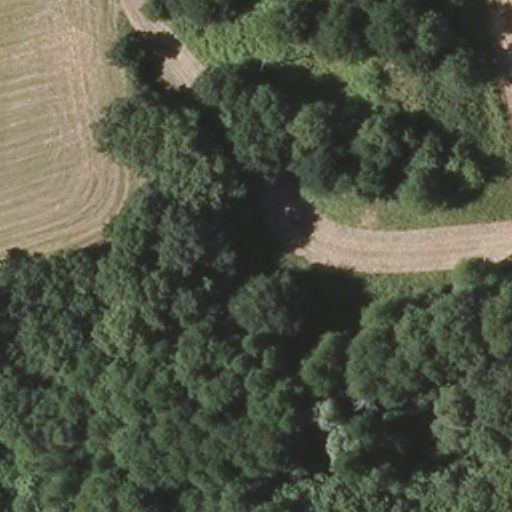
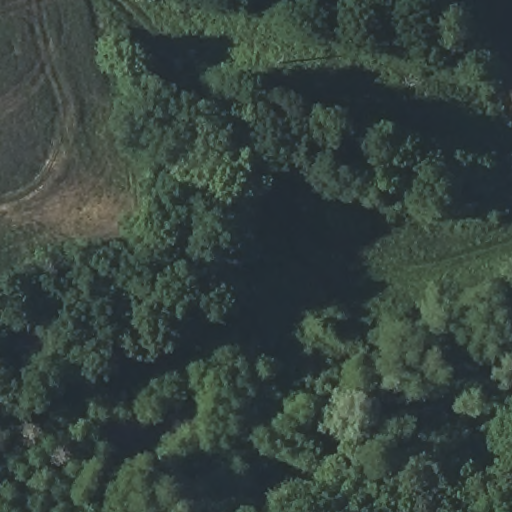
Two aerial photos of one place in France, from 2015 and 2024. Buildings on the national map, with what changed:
[]

